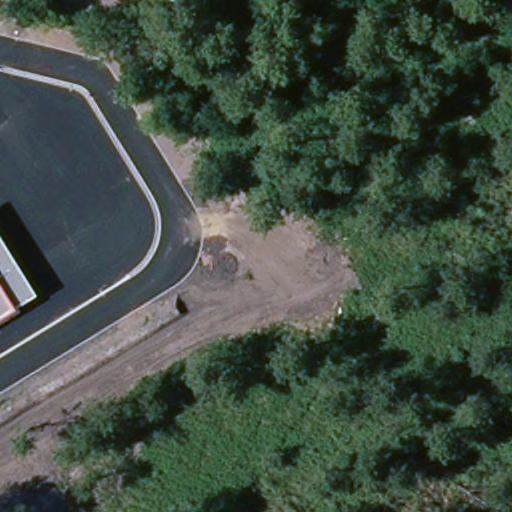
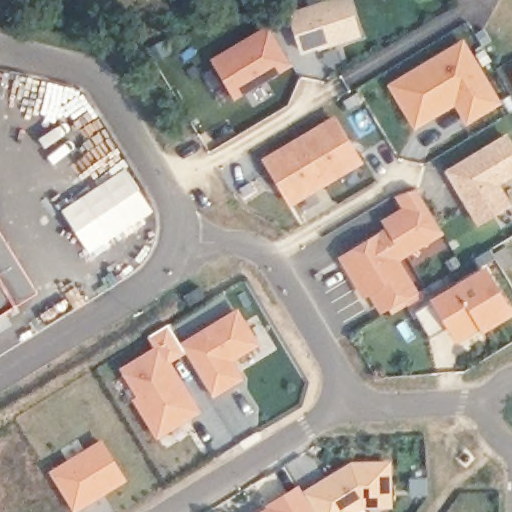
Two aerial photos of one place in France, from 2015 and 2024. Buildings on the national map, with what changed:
new [(302,55),(287,10),(324,0),(349,0),(362,38),(302,55)]
new [(292,65),(235,101),(209,60),(268,25),(292,65)]
new [(462,43),(499,103),(468,121),(456,102),(416,127),(391,86),(395,84),(462,43)]
new [(512,74),(511,73),(512,72),(512,74)]
new [(363,164),(290,209),(260,159),(334,115),(363,164)]
new [(512,178),(501,184),(512,204),(512,207),(479,226),(445,170),(507,133),(512,140),(512,178)]
new [(153,212),(91,254),(61,211),(124,168),(153,212)]
new [(444,234),(401,259),(420,292),(379,315),(369,297),(364,300),(336,259),(385,227),(381,221),(402,208),(395,197),(417,189),(444,234)]
unchanged [(38,295),(17,309),(0,319),(0,233),(38,295)]
new [(512,316),(482,334),(480,331),(457,345),(445,325),(430,337),(415,311),(429,301),(487,265),(512,308),(512,316)]
new [(241,314),(260,346),(234,363),(245,380),(216,398),(185,348),(241,314)]
new [(184,354),(171,363),(201,412),(157,439),(132,400),(137,397),(120,368),(154,348),(148,338),(168,326),(184,354)]
new [(105,443),(128,480),(78,512),(54,474),(105,443)]
new [(392,509),(366,508),(357,512),(261,512),(267,509),(265,505),(299,485),(302,492),(351,462),(392,462),(392,509)]

